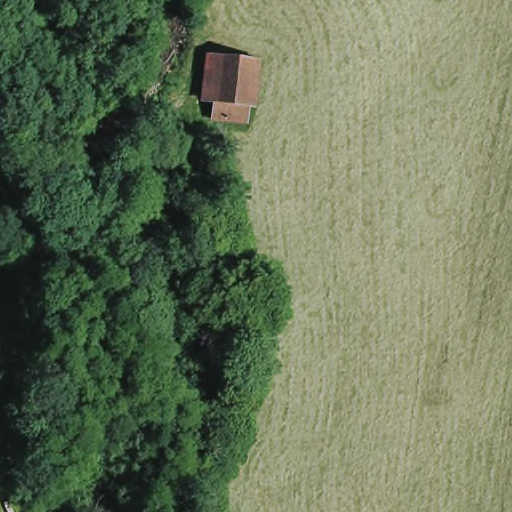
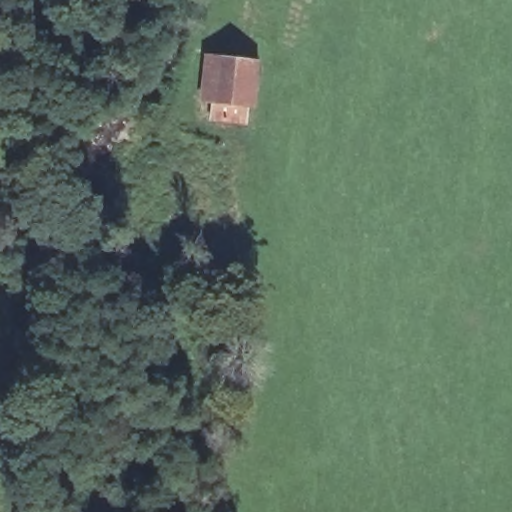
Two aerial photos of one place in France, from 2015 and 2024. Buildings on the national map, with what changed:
unchanged [(207,118),(208,100),(205,100),(210,54),(253,59),(248,104),(243,104),(241,121),(207,118)]

